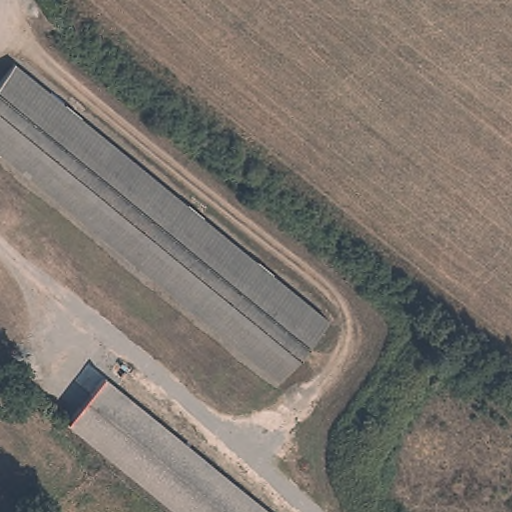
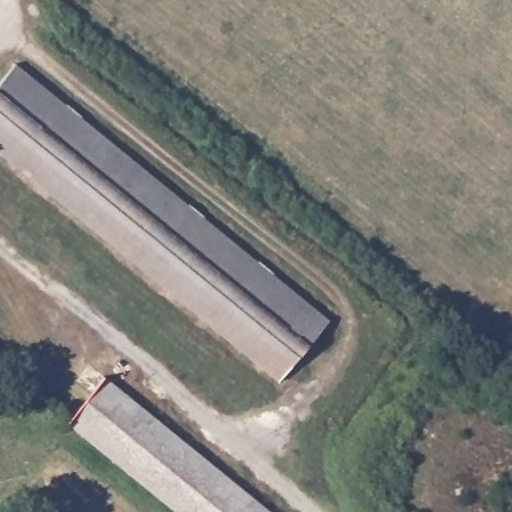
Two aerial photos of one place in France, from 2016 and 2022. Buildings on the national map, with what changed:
unchanged [(0,90),(17,69),(257,265),(205,325),(0,157),(0,90)]
unchanged [(257,265),(331,325),(280,387),(205,325),(257,265)]
unchanged [(64,422),(88,392),(73,380),(86,364),(130,400),(92,444),(64,422)]
unchanged [(130,400),(267,512),(175,512),(92,444),(130,400)]

